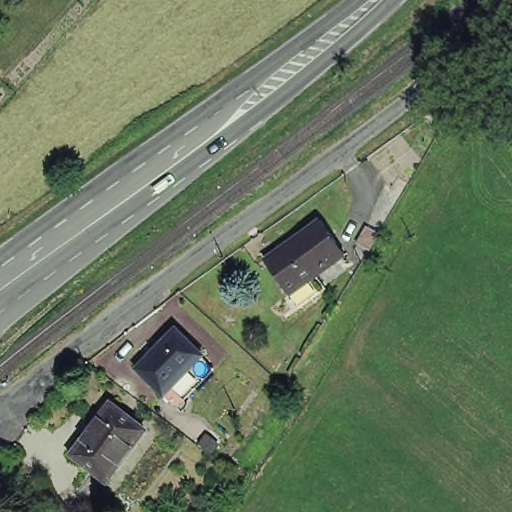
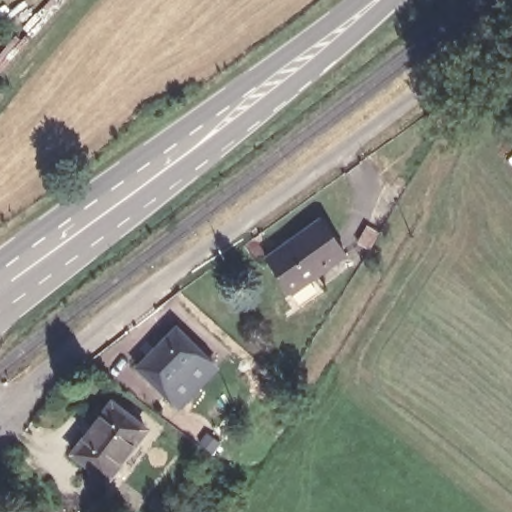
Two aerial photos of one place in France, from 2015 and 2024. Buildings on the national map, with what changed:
unchanged [(319,222),(344,256),(290,296),(267,267),(263,262),(292,242),(319,222)]
unchanged [(159,398),(133,372),(171,334),(197,360),(195,362),(207,374),(172,408),(160,397),(159,398)]
unchanged [(107,484),(73,457),(112,407),(146,435),(107,484)]

